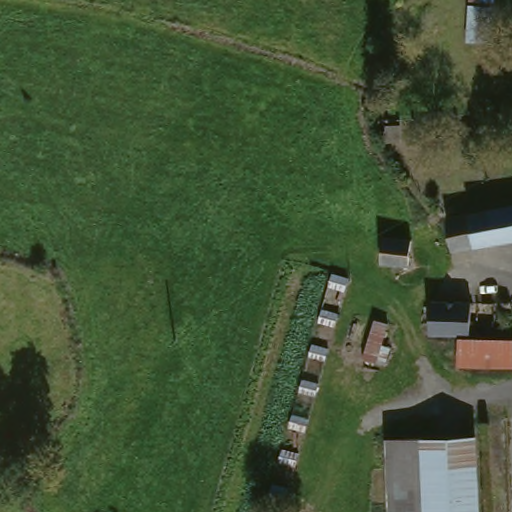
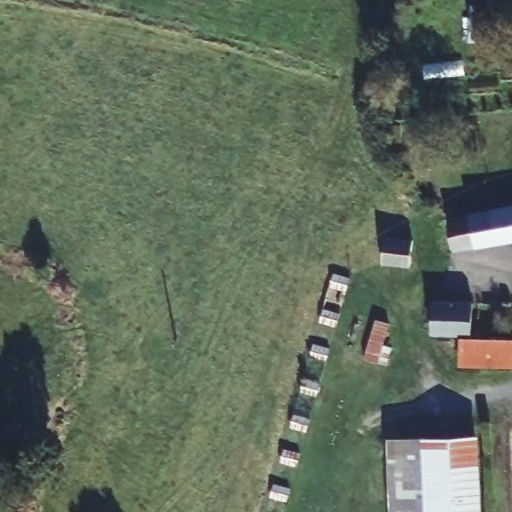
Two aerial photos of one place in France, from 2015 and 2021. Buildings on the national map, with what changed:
unchanged [(493,1),(490,1),(487,35),(487,40),(467,37),(471,0),(493,0),(493,1)]
unchanged [(448,244),(445,211),(512,199),(512,231),(448,244)]
unchanged [(396,232),(413,234),(413,235),(411,252),(410,262),(402,261),(385,260),(384,260),(377,260),(378,250),(377,250),(375,250),(372,249),(370,249),(368,247),(367,245),(368,243),(369,241),(369,240),(372,239),(375,237),(378,238),(379,231),(396,232)]
unchanged [(454,364),(455,332),(427,328),(426,296),(467,298),(467,333),(512,335),(512,365),(454,364)]
unchanged [(390,430),(410,431),(476,434),(472,512),(386,512),(387,487),(390,430)]

